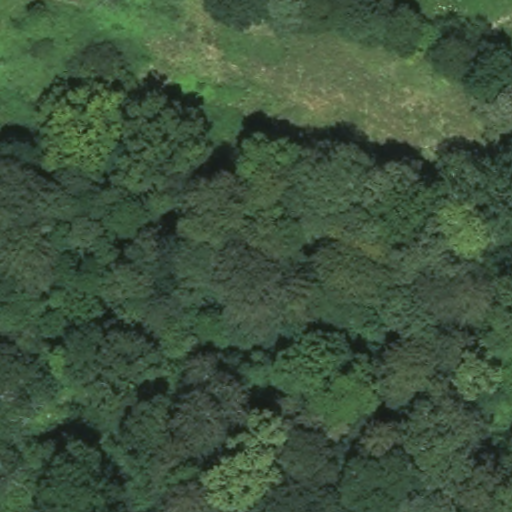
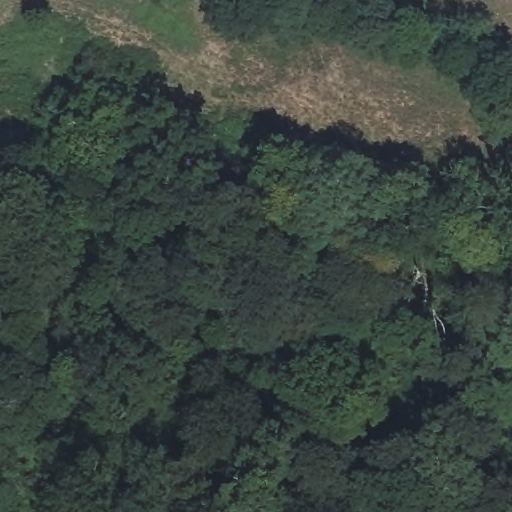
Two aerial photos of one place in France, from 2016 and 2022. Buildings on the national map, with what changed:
[]

